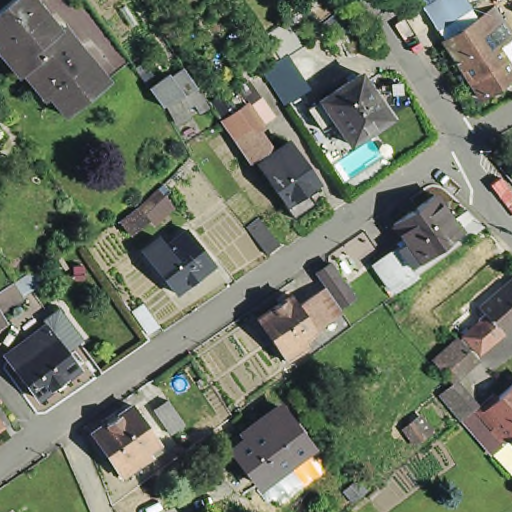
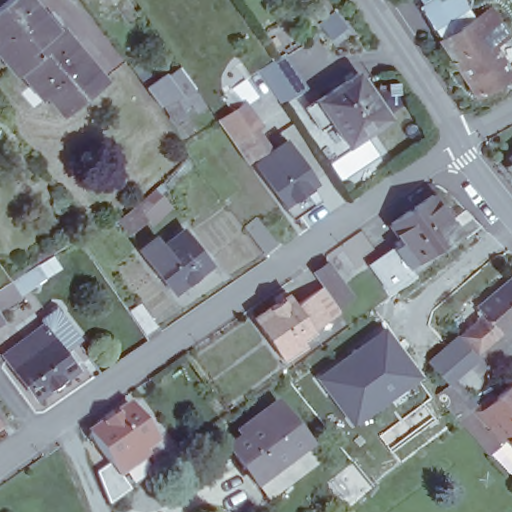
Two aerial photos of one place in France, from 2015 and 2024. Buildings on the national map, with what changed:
unchanged [(39,86),(36,89),(19,68),(14,71),(1,56),(4,53),(0,47),(0,4),(5,0),(23,0),(46,31),(58,23),(85,57),(102,79),(98,83),(61,112),(39,86)]
unchanged [(420,8),(431,0),(466,0),(474,11),(491,6),(509,38),(494,47),(512,76),(474,99),(420,8)]
unchanged [(348,25),(336,36),(325,25),(338,14),(348,25)]
unchanged [(262,70),(282,56),(294,72),(297,70),(309,85),(283,101),(273,86),(262,70)]
unchanged [(168,76),(170,78),(183,70),(196,89),(183,96),(178,98),(159,108),(148,91),(168,76)]
unchanged [(388,113),(351,140),(336,116),(323,125),(309,106),(359,71),(388,113)]
unchanged [(218,116),(231,108),(233,110),(244,103),(268,136),(260,143),(264,149),(248,161),(232,139),(218,116)]
unchanged [(293,216),(284,202),(258,161),(289,140),(318,180),(306,188),(314,201),(293,216)]
unchanged [(512,153),(512,164),(507,157),(512,153)]
unchanged [(125,221),(144,205),(164,187),(174,201),(154,218),(135,234),(125,221)]
unchanged [(393,245),(401,239),(389,221),(430,192),(457,229),(407,264),(393,245)]
unchanged [(211,262),(175,292),(148,259),(143,252),(161,238),(166,243),(185,228),(211,262)]
unchanged [(414,274),(389,290),(369,263),(393,245),(407,264),(414,274)]
unchanged [(299,336),(304,342),(283,357),(253,316),(286,292),(294,303),(321,285),(311,271),(326,261),(344,287),(329,298),(338,309),(311,326),(312,327),(299,336)]
unchanged [(5,314),(11,323),(0,327),(0,291),(36,268),(46,283),(5,314)]
unchanged [(452,336),(454,339),(459,335),(458,335),(474,321),(473,319),(479,313),(475,307),(512,273),(512,319),(497,331),(493,328),(489,333),(492,337),(474,352),(464,342),(461,345),(469,355),(457,366),(444,377),(428,359),(440,348),(452,336)]
unchanged [(132,311),(144,302),(159,325),(148,334),(132,311)]
new [(354,429),(315,377),(384,325),(422,376),(354,429)]
unchanged [(36,400),(9,361),(33,345),(30,342),(48,328),(54,336),(78,369),(36,400)]
unchanged [(498,440),(469,408),(458,418),(449,409),(451,407),(439,393),(453,381),(474,405),(489,393),(494,396),(512,380),(512,444),(504,436),(498,440)]
demolished [(169,436),(148,410),(164,398),(186,425),(169,436)]
unchanged [(279,398),(311,441),(259,477),(233,442),(248,430),(244,423),(279,398)]
unchanged [(128,403),(153,437),(141,447),(146,453),(117,473),(88,432),(128,403)]
demolished [(415,448),(397,428),(415,412),(433,434),(415,448)]
unchanged [(467,413),(476,423),(468,429),(459,420),(467,413)]
unchanged [(356,480),(365,489),(353,499),(346,489),(356,480)]
unchanged [(320,506),(324,512),(310,512),(320,506)]

